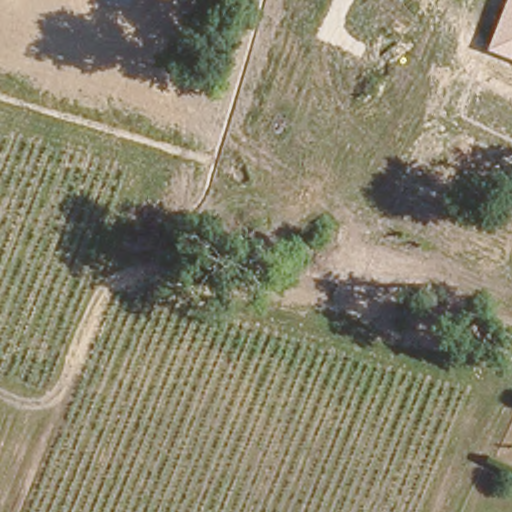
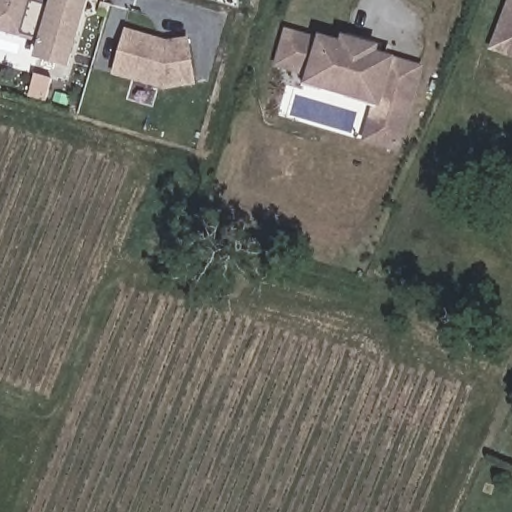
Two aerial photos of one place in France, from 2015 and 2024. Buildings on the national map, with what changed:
new [(37,42),(0,32),(0,0),(38,0),(48,4),(50,0),(88,0),(67,69),(32,58),(37,42)]
unchanged [(491,50),(510,0),(512,0),(512,58),(491,50)]
new [(164,91),(110,75),(124,28),(167,40),(187,37),(196,85),(164,91)]
new [(361,142),(372,105),(302,85),(305,76),(272,67),(283,28),(317,38),(319,34),(340,41),(342,34),(379,45),(377,52),(395,57),(424,65),(397,152),(361,142)]

